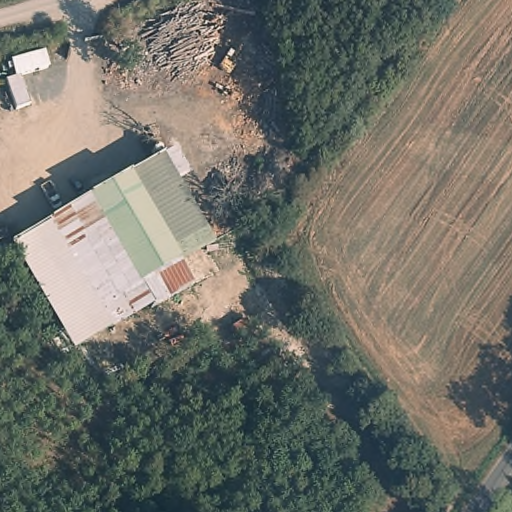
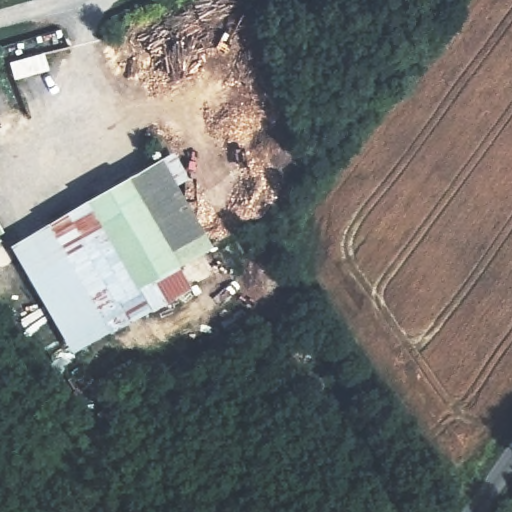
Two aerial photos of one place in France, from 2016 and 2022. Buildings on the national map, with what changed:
unchanged [(175,150),(190,176),(176,184),(213,246),(178,266),(190,287),(110,332),(47,222),(175,150)]

